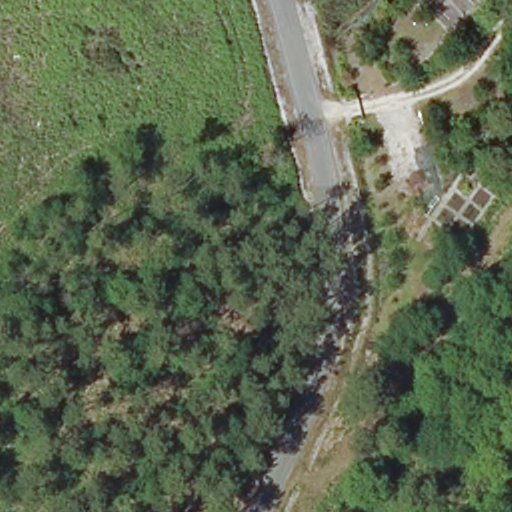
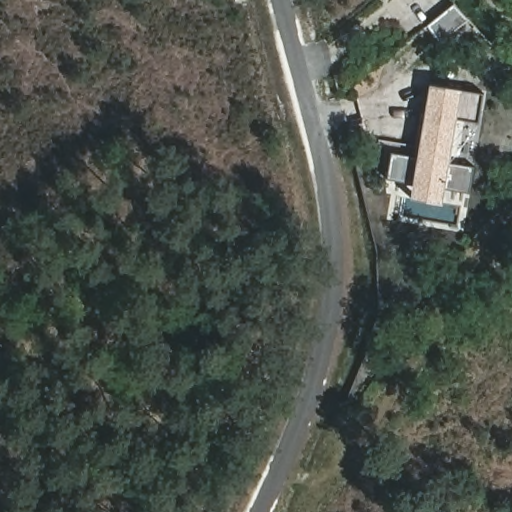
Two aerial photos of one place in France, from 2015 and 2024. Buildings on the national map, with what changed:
new [(440,41),(428,25),(457,4),(469,20),(440,41)]
new [(481,93),(477,121),(457,118),(451,161),(473,166),(469,191),(445,187),(443,203),(411,197),(413,182),(388,179),(393,152),(417,157),(431,84),(462,89),(481,93)]

